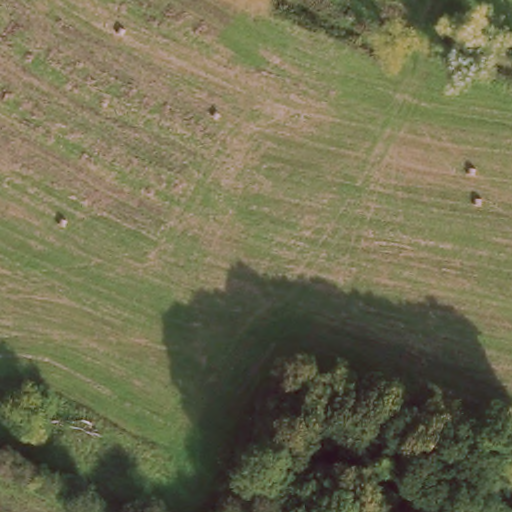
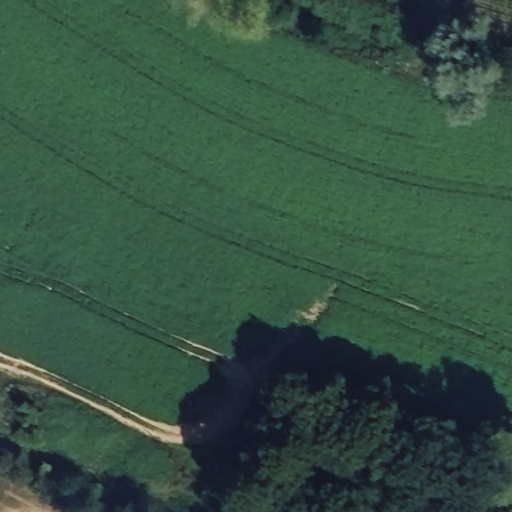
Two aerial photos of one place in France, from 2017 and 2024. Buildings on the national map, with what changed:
[]

